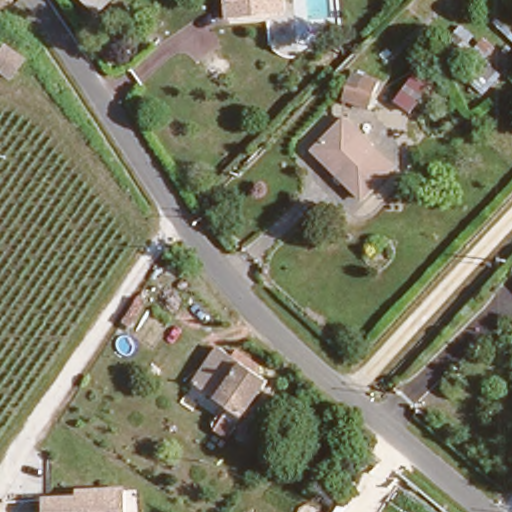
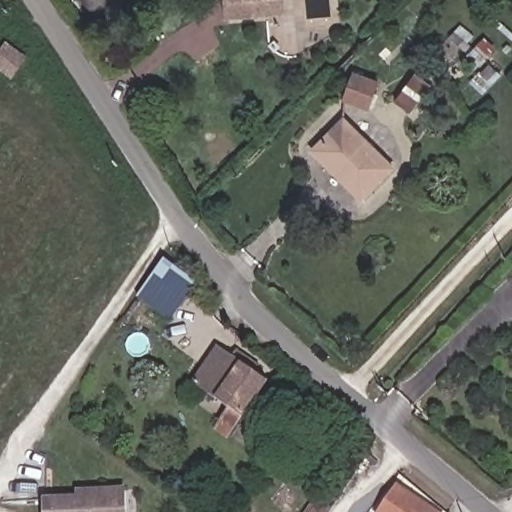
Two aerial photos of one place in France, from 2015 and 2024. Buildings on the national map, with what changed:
unchanged [(259,12),(220,12),(220,0),(270,0),(270,12),(259,12)]
unchanged [(0,64),(0,58),(12,44),(27,57),(12,75),(0,64)]
unchanged [(379,90),(366,113),(341,98),(356,75),(379,90)]
unchanged [(433,90),(415,115),(397,102),(416,75),(433,90)]
unchanged [(352,112),(396,160),(365,190),(320,141),(352,112)]
new [(197,283),(171,322),(137,298),(163,260),(197,283)]
unchanged [(225,400),(192,379),(218,340),(263,371),(227,425),(214,416),(225,400)]
new [(439,512),(378,512),(397,483),(439,512)]
demolished [(448,511),(448,512),(406,512),(402,509),(416,490),(448,511)]
unchanged [(84,499),(83,493),(100,492),(128,491),(129,512),(51,512),(51,500),(84,499)]

